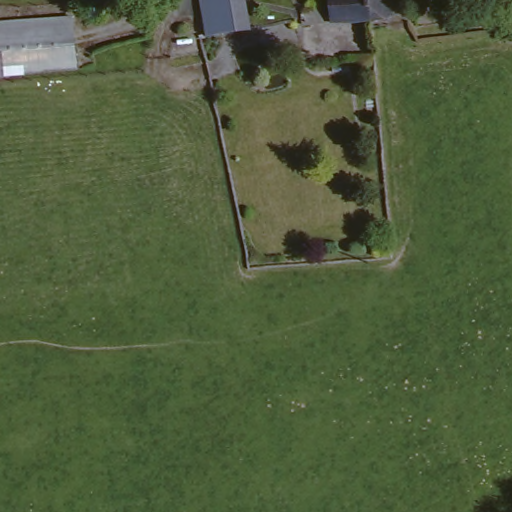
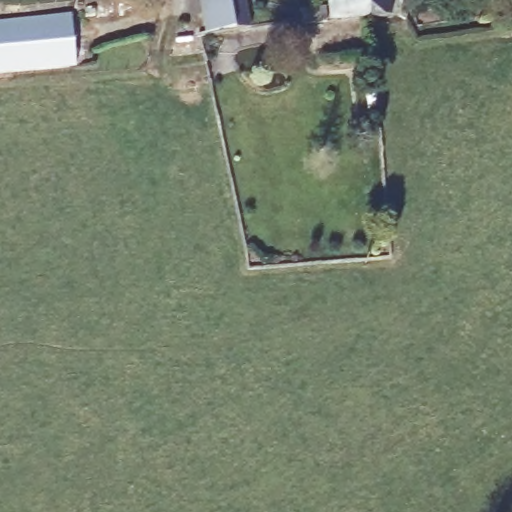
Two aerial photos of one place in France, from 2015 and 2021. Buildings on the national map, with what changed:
unchanged [(209,33),(204,0),(234,0),(238,29),(209,33)]
unchanged [(238,29),(234,0),(254,0),(257,26),(238,29)]
unchanged [(370,21),(325,26),(323,0),(387,0),(389,20),(370,21)]
unchanged [(72,12),(77,65),(0,73),(0,20),(72,12)]

